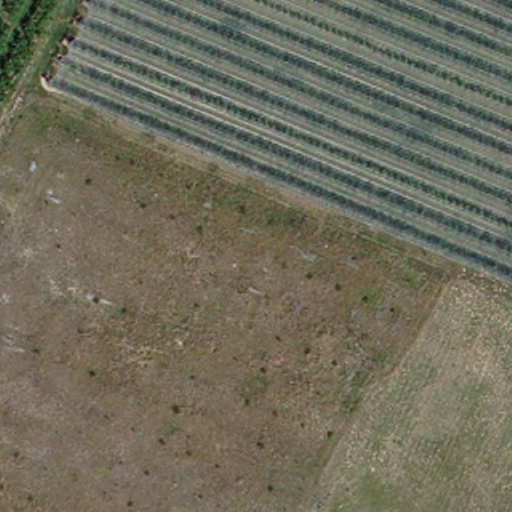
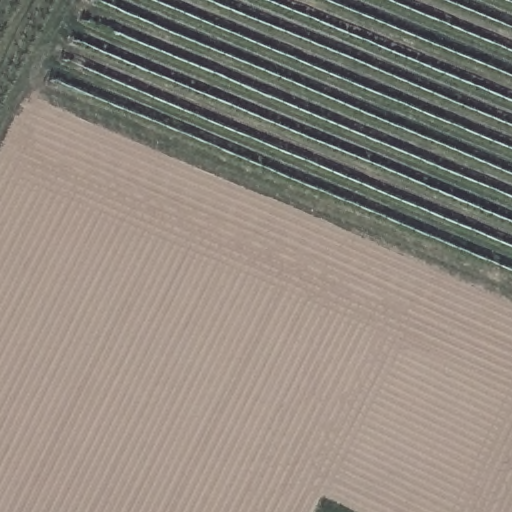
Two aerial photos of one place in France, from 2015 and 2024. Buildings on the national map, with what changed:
[]

